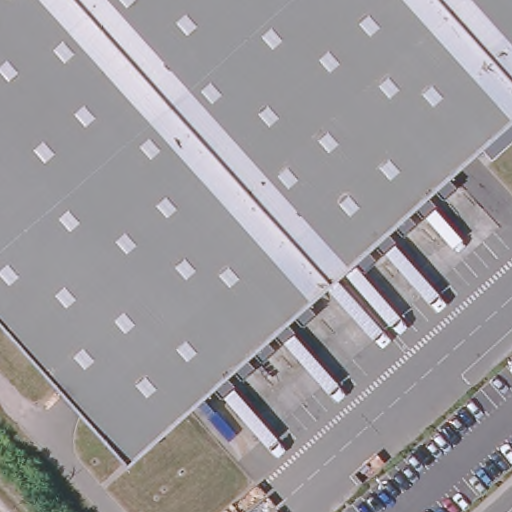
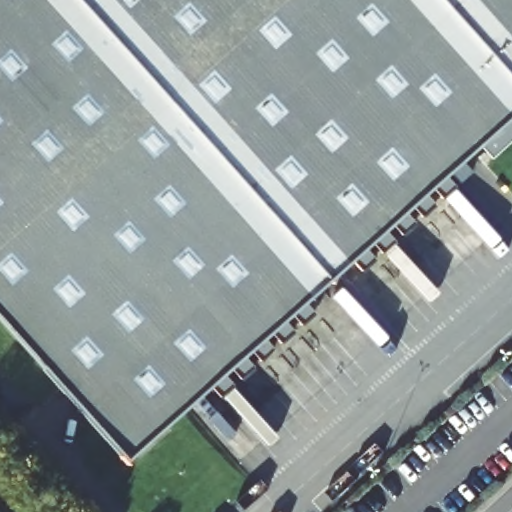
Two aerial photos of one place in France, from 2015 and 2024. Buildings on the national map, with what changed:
unchanged [(512,113),(111,472),(113,475),(112,476),(0,350),(0,0),(512,0),(512,113)]

